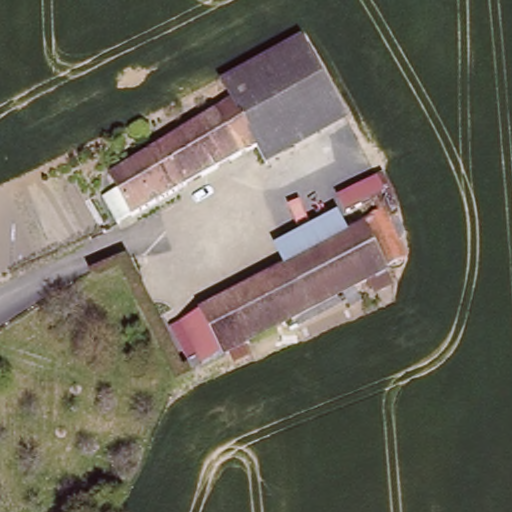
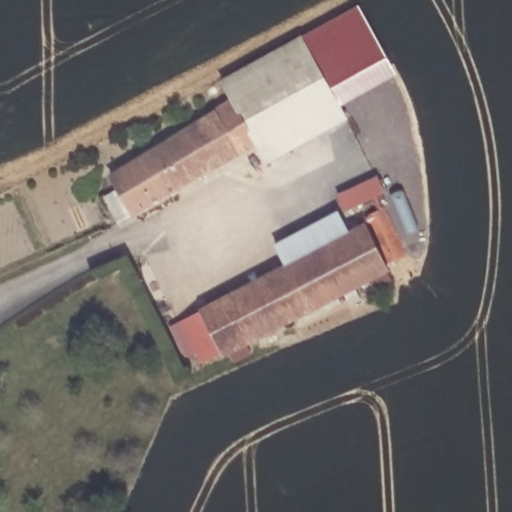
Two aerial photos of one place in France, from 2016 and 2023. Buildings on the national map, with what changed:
new [(359,6),(395,75),(340,106),(301,39),(359,6)]
unchanged [(347,119),(268,164),(259,148),(235,105),(222,83),(301,39),(347,119)]
unchanged [(117,225),(103,199),(119,191),(111,175),(235,105),(259,148),(133,217),(117,225)]
unchanged [(380,194),(342,213),(335,199),(372,180),(380,194)]
unchanged [(353,299),(343,305),(337,294),(331,298),(335,304),(291,328),(287,320),(220,356),(220,354),(197,312),(285,265),(345,234),(362,225),(359,220),(380,209),(403,255),(383,267),(385,269),(390,281),(370,293),(363,280),(347,289),(353,299)]
unchanged [(285,265),(275,244),(335,214),(345,234),(285,265)]
unchanged [(220,354),(199,364),(177,323),(197,312),(220,354)]

